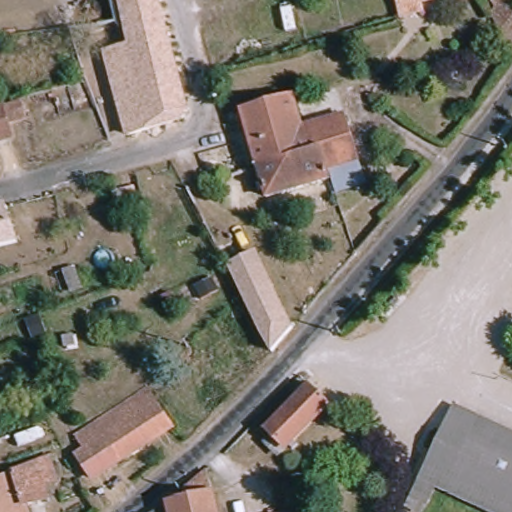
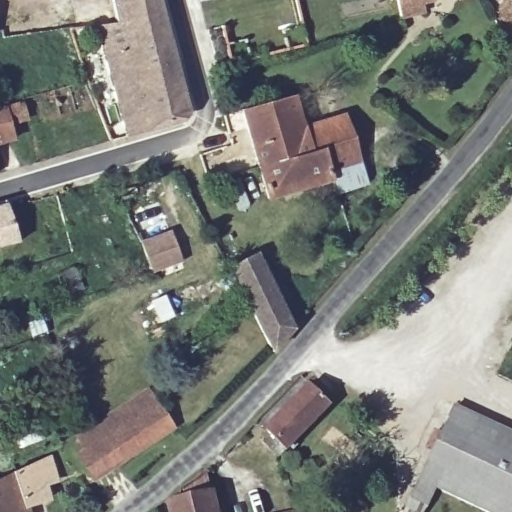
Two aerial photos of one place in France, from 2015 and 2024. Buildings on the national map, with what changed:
unchanged [(178,117),(125,132),(104,62),(93,65),(89,52),(126,43),(116,0),(152,0),(180,108),(178,117)]
unchanged [(391,3),(390,0),(403,0),(391,3)]
unchanged [(486,15),(492,10),(500,0),(507,0),(512,9),(512,33),(502,46),(486,15)]
unchanged [(293,128),(299,151),(248,165),(232,109),(283,94),(293,128)]
unchanged [(13,100),(17,117),(0,122),(0,104),(13,100)]
unchanged [(335,115),(348,160),(318,169),(311,148),(299,151),(293,128),(295,127),(335,115)]
unchanged [(2,132),(0,132),(0,126),(2,132)]
unchanged [(248,165),(299,151),(311,148),(318,169),(321,178),(257,197),(248,165)]
unchanged [(5,204),(16,241),(0,245),(0,205),(5,204)]
new [(169,233),(179,262),(150,273),(140,243),(169,233)]
unchanged [(248,256),(287,333),(267,356),(239,300),(224,269),(248,256)]
unchanged [(80,286),(71,290),(62,271),(71,267),(80,286)]
unchanged [(171,290),(181,310),(171,314),(162,294),(171,290)]
unchanged [(259,426),(305,384),(324,402),(275,450),(261,437),(265,433),(259,426)]
unchanged [(423,510),(405,502),(426,455),(420,453),(430,435),(435,437),(449,407),(496,429),(512,436),(512,512),(470,512),(430,494),(423,510)]
unchanged [(73,458),(86,449),(99,440),(149,408),(166,432),(115,466),(88,483),(73,458)]
unchanged [(9,468),(33,459),(43,496),(18,504),(20,512),(0,512),(0,475),(10,471),(9,468)]

